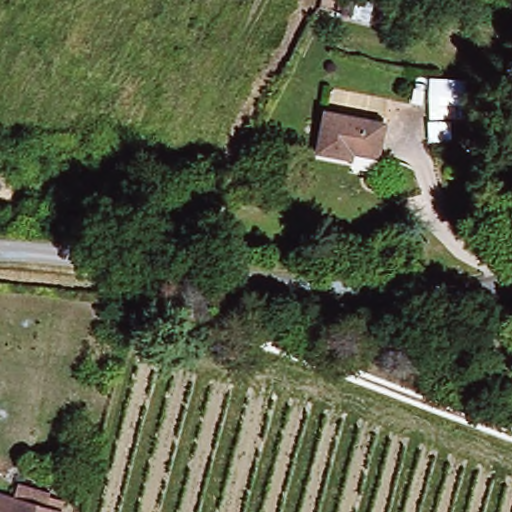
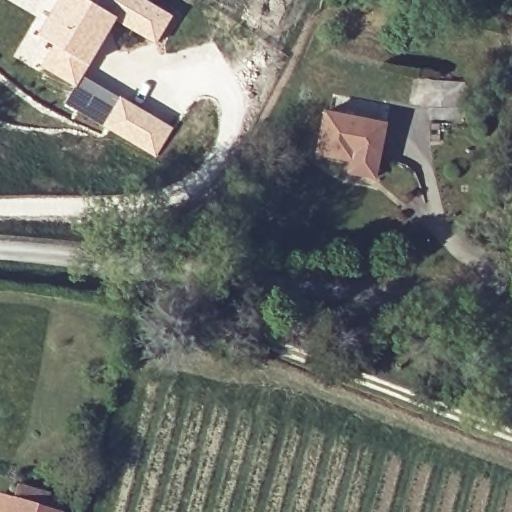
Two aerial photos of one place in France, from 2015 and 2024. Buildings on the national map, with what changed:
new [(89,0),(117,19),(116,21),(84,75),(74,88),(36,65),(49,45),(34,36),(56,0),(89,0)]
new [(155,45),(116,21),(117,19),(89,0),(147,0),(173,15),(155,45)]
new [(74,88),(84,75),(120,95),(102,127),(62,105),(74,88)]
new [(120,95),(174,127),(156,157),(102,127),(120,95)]
unchanged [(380,156),(353,152),(351,159),(317,154),(326,110),(387,122),(380,156)]
unchanged [(13,490),(49,498),(47,510),(53,512),(7,512),(13,490)]

